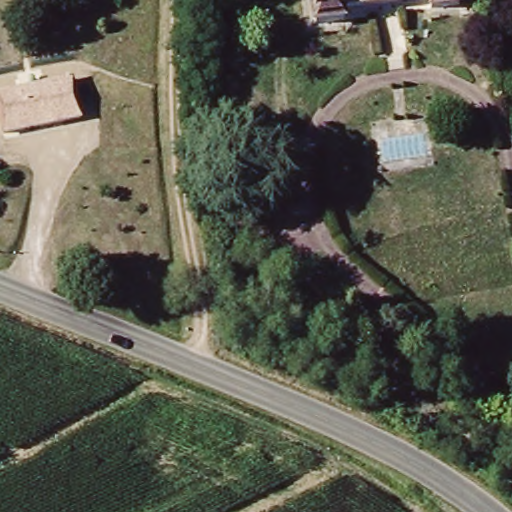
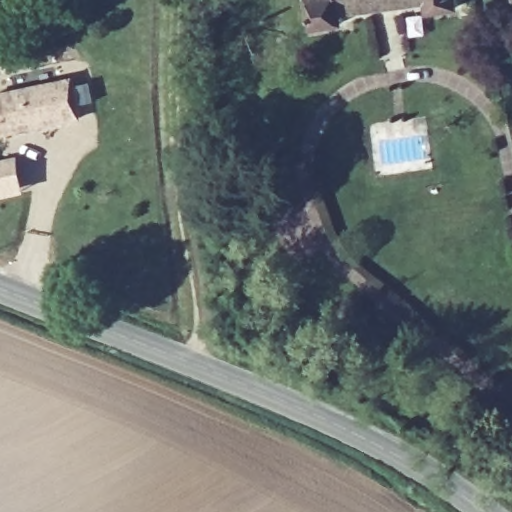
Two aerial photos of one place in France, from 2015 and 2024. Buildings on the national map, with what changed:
unchanged [(343,23),(314,27),(310,0),(416,0),(341,12),(343,23)]
unchanged [(428,13),(425,0),(457,0),(459,10),(428,13)]
unchanged [(4,135),(0,114),(0,96),(73,82),(80,121),(4,135)]
new [(26,191),(0,197),(0,158),(18,154),(26,191)]

